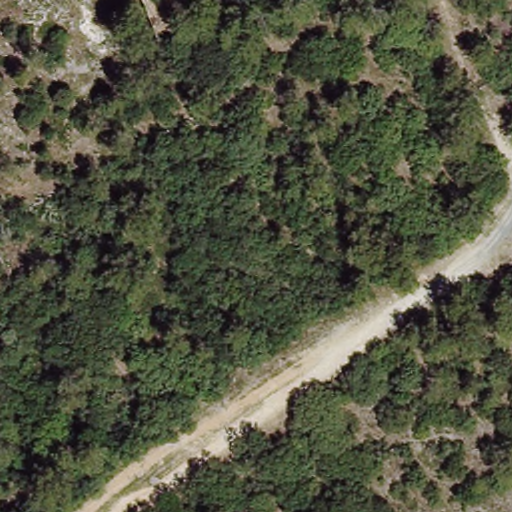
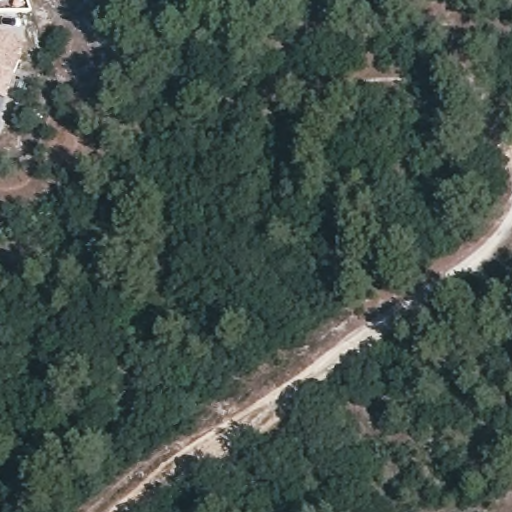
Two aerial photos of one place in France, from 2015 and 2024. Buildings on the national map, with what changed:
new [(23,41),(5,95),(0,93),(0,33),(23,41)]

